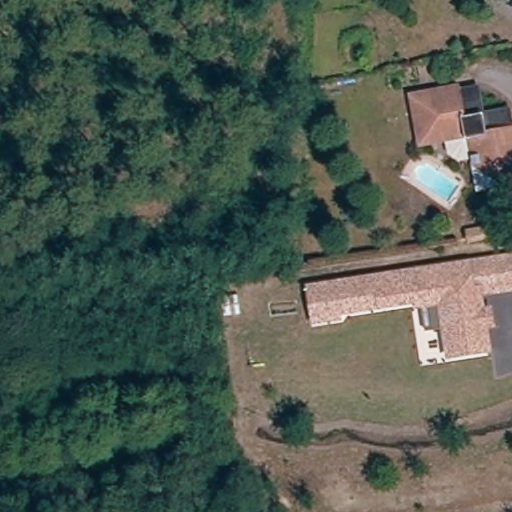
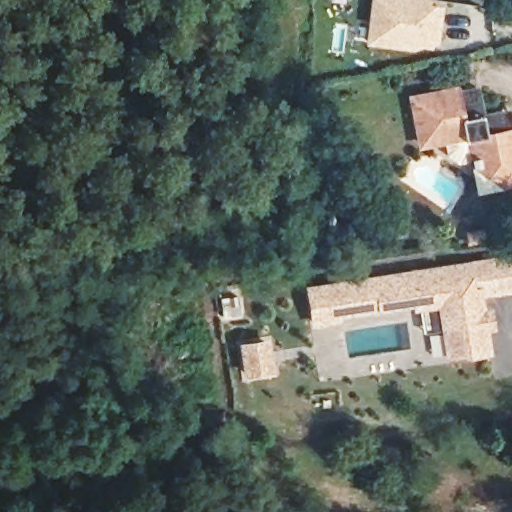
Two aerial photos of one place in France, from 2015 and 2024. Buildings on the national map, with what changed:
new [(413,51),(366,45),(373,0),(432,0),(431,4),(436,5),(445,6),(440,45),(429,44),(413,51)]
unchanged [(472,179),(468,146),(420,153),(412,107),(462,99),(463,108),(486,104),(490,124),(512,120),(512,198),(507,199),(472,179)]
unchanged [(485,230),(487,240),(472,242),(470,232),(485,230)]
unchanged [(416,299),(336,310),(337,315),(313,318),(308,284),(512,257),(512,287),(481,292),(490,349),(451,355),(446,327),(426,330),(422,303),(417,304),(416,299)]
new [(275,373),(244,378),(239,343),(270,339),(275,373)]

